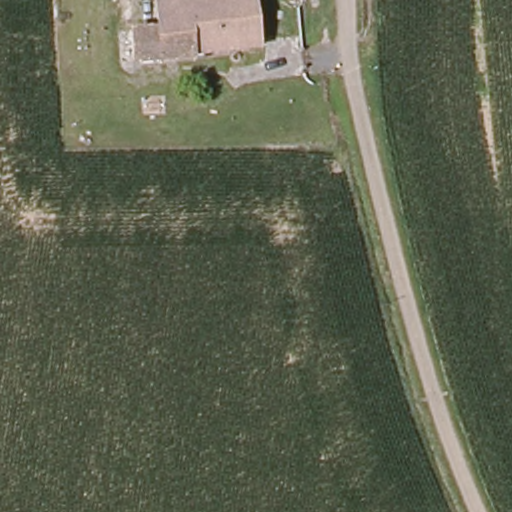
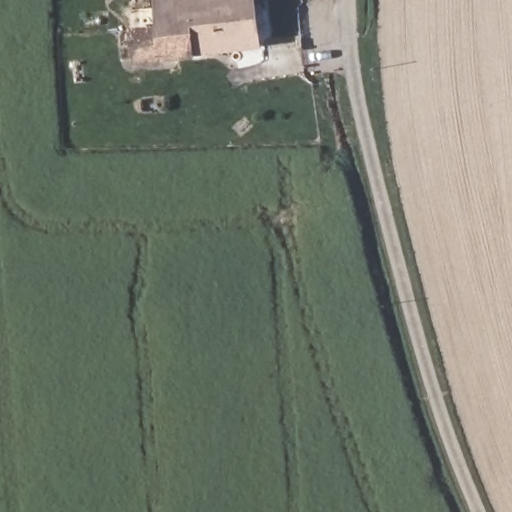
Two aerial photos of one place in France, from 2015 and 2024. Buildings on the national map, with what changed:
unchanged [(156,29),(154,0),(257,0),(262,52),(195,63),(132,69),(130,31),(156,29)]

